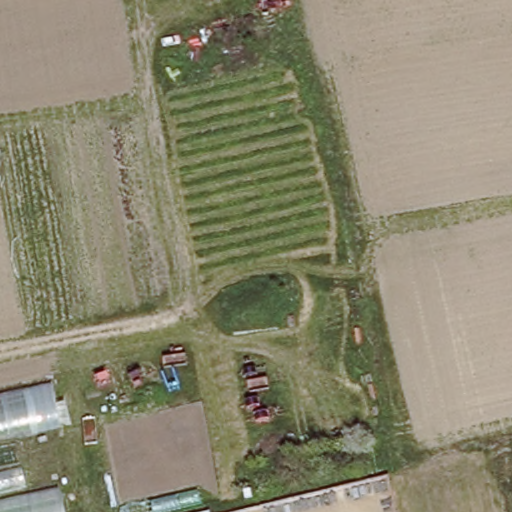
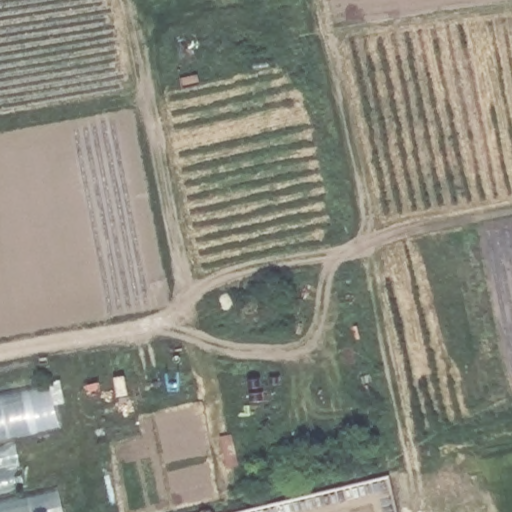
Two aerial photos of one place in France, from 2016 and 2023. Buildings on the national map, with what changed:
unchanged [(49,381),(58,424),(15,436),(27,493),(57,486),(63,512),(0,512),(0,393),(49,381)]

